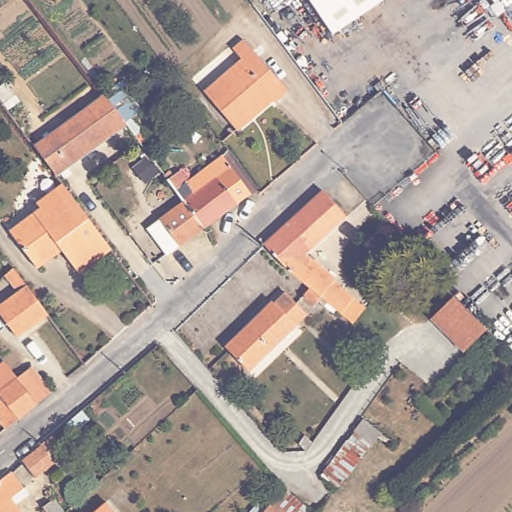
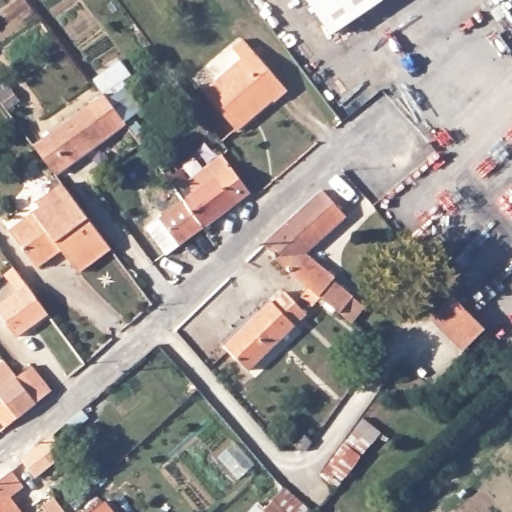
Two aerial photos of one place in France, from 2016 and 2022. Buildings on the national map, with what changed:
unchanged [(308,0),(374,0),(326,30),(308,0)]
unchanged [(280,99),(271,93),(253,115),(257,119),(244,131),(207,91),(241,58),(231,48),(245,39),(292,86),(280,99)]
unchanged [(35,146),(103,91),(126,121),(57,175),(35,146)]
unchanged [(186,194),(171,175),(185,164),(201,186),(221,171),(213,158),(224,150),(254,188),(209,223),(186,194)]
unchanged [(60,249),(37,267),(11,231),(41,206),(37,201),(62,182),(111,246),(77,271),(60,249)]
unchanged [(348,211),(310,248),(340,275),(337,280),(355,294),(345,308),(317,289),(291,267),(271,243),(293,220),(328,189),(348,211)]
unchanged [(209,223),(184,239),(163,212),(186,194),(209,223)]
unchanged [(56,318),(23,343),(0,310),(0,305),(16,293),(7,279),(18,269),(56,318)]
unchanged [(432,309),(455,286),(487,318),(463,342),(432,309)]
unchanged [(254,367),(230,341),(269,302),(295,328),(254,367)]
unchanged [(0,417),(0,361),(5,357),(16,372),(31,361),(49,386),(36,397),(16,413),(4,423),(0,417)]
unchanged [(364,418),(383,432),(340,487),(321,475),(364,418)]
unchanged [(21,454),(41,436),(54,425),(58,430),(65,440),(56,450),(37,471),(21,454)]
unchanged [(10,491),(27,511),(72,478),(87,495),(83,498),(67,512),(0,512),(0,478),(14,465),(25,481),(10,491)]
unchanged [(300,504),(292,512),(264,512),(284,487),(300,504)]
unchanged [(111,507),(115,512),(103,512),(111,507)]

